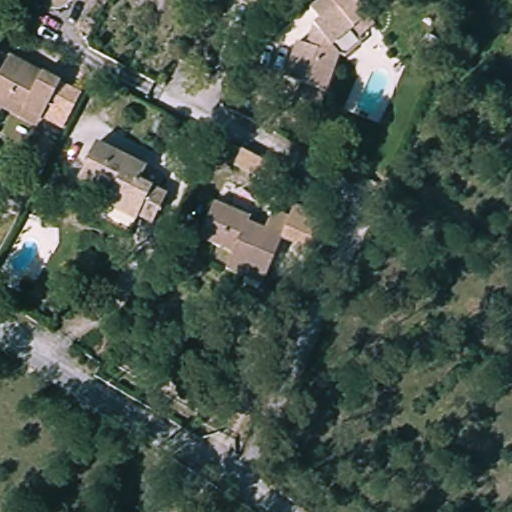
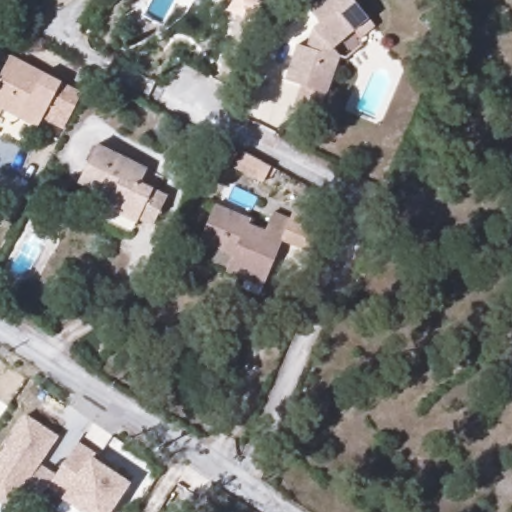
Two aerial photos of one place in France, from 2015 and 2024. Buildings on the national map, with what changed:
unchanged [(302,82),(286,74),(299,38),(306,44),(323,18),(314,7),(324,0),(356,0),(377,27),(363,39),(354,30),(336,45),(343,55),(328,92),(321,90),(311,119),(291,111),(302,82)]
unchanged [(32,123),(0,102),(4,95),(0,92),(0,59),(6,48),(88,96),(70,127),(39,109),(32,123)]
unchanged [(154,175),(148,188),(171,200),(156,231),(144,224),(139,235),(98,213),(105,196),(88,187),(105,150),(154,175)]
unchanged [(264,183),(236,168),(243,153),(270,168),(264,183)]
unchanged [(286,201),(319,215),(305,248),(273,233),(281,212),(286,201)]
unchanged [(276,264),(264,290),(231,273),(238,257),(208,241),(225,205),(256,220),(253,226),(285,242),(276,264)]
new [(58,431),(38,461),(52,470),(38,491),(20,481),(9,499),(0,494),(0,443),(23,406),(58,431)]
new [(40,490),(68,445),(86,456),(83,461),(88,465),(92,460),(103,466),(99,471),(120,484),(102,512),(50,512),(57,501),(40,490)]

